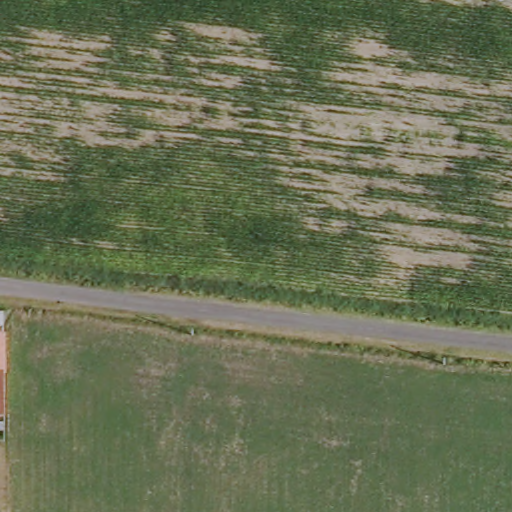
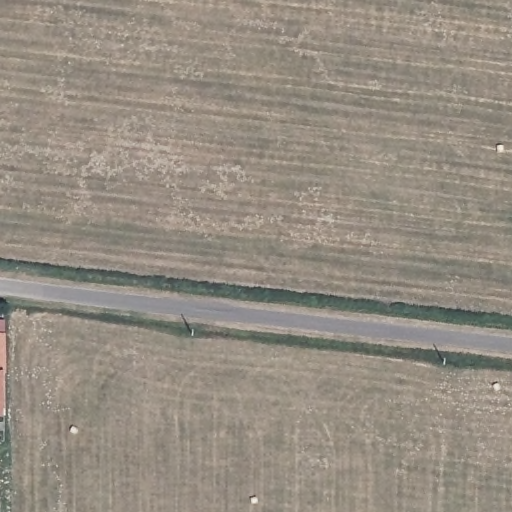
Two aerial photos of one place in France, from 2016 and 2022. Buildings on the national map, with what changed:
unchanged [(6,374),(0,374),(0,335),(6,335),(6,374)]
unchanged [(6,374),(7,416),(0,416),(0,374),(6,374)]

